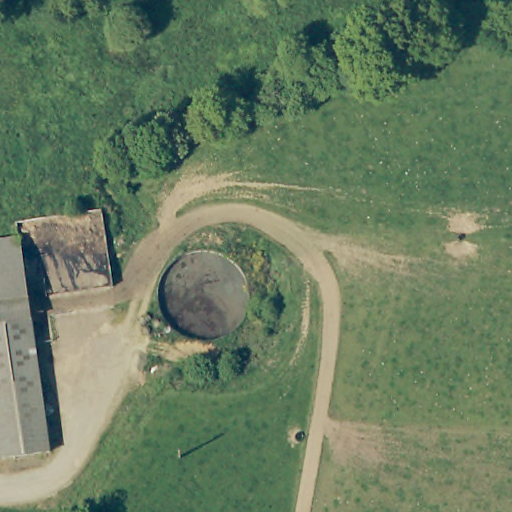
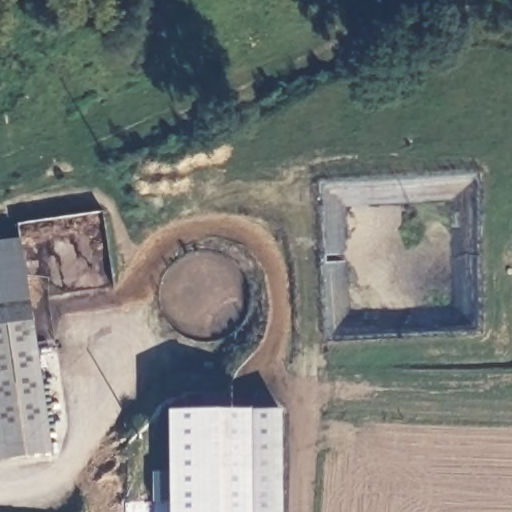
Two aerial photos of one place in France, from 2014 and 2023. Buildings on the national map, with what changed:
unchanged [(31,316),(0,320),(0,238),(18,235),(31,316)]
unchanged [(49,447),(0,454),(0,320),(31,316),(49,447)]
new [(167,410),(277,408),(279,512),(169,512),(169,501),(153,500),(152,471),(168,470),(167,410)]

